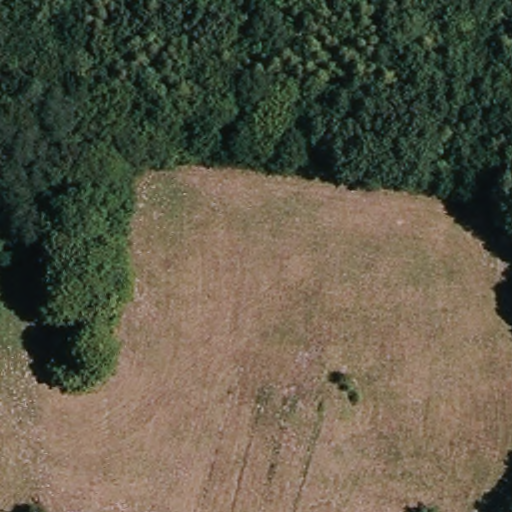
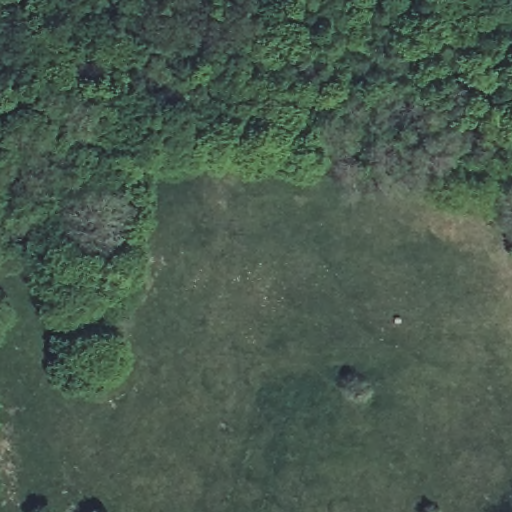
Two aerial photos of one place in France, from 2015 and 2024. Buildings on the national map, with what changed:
[]

